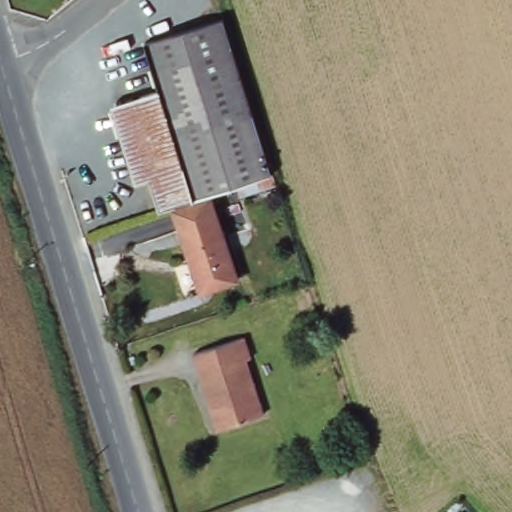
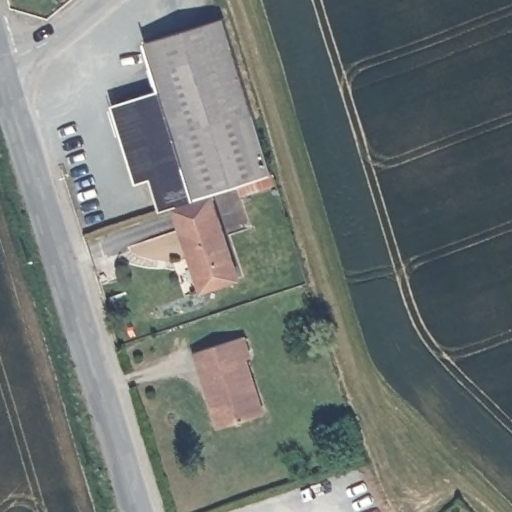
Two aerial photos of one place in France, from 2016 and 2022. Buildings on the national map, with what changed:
unchanged [(122,106),(164,93),(150,45),(228,20),(232,32),(256,114),(188,137),(137,154),(122,106)]
unchanged [(157,180),(146,184),(137,154),(188,137),(256,114),(272,166),(275,176),(279,189),(243,200),(240,188),(199,202),(198,196),(165,206),(157,180)]
unchanged [(239,282),(203,293),(179,211),(214,201),(239,282)]
unchanged [(253,360),(247,362),(264,417),(219,430),(195,355),(247,339),(253,360)]

